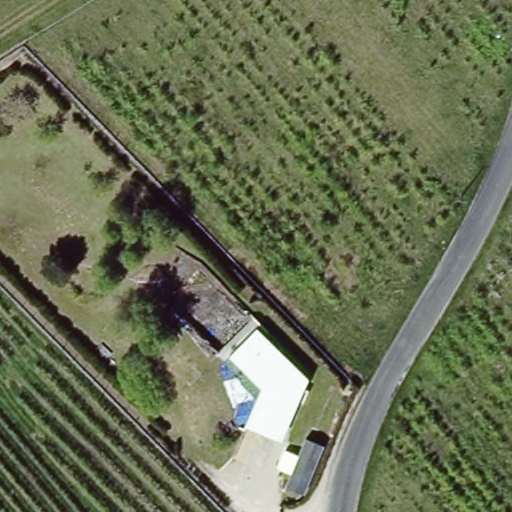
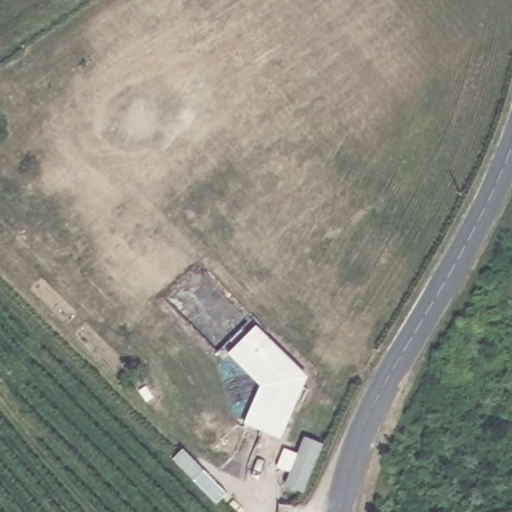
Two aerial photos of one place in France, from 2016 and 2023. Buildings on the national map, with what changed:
unchanged [(239,427),(221,356),(229,355),(258,325),(269,338),(241,364),(266,390),(250,427),(239,427)]
unchanged [(269,338),(309,382),(284,442),(250,427),(266,390),(241,364),(269,338)]
unchanged [(324,446),(304,493),(286,487),(292,473),(278,467),(285,450),(299,455),(306,438),(324,446)]

